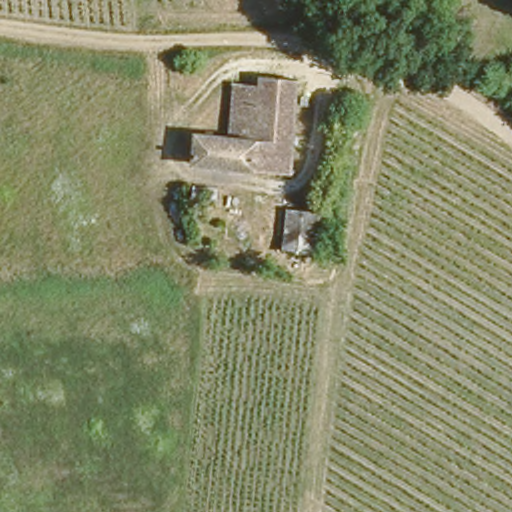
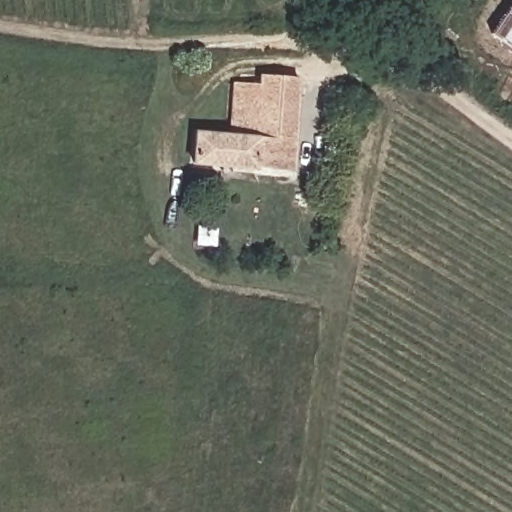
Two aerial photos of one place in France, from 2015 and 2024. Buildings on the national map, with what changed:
new [(512,47),(491,33),(512,2),(512,47)]
unchanged [(196,155),(198,126),(232,128),(238,76),(265,78),(267,64),(307,67),(296,164),(196,155)]
unchanged [(291,197),(329,203),(319,253),(286,244),(291,197)]

